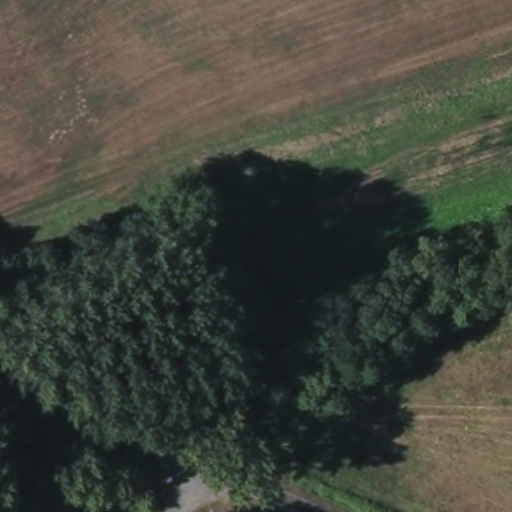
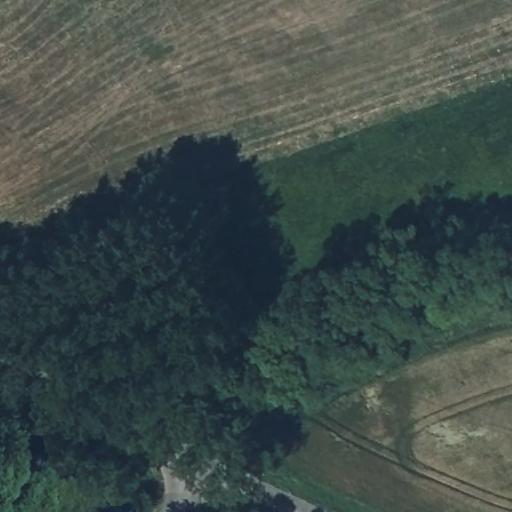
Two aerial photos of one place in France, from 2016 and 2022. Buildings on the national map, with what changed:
[]

